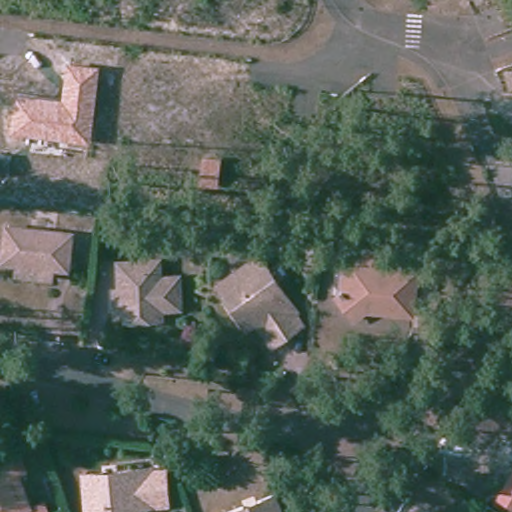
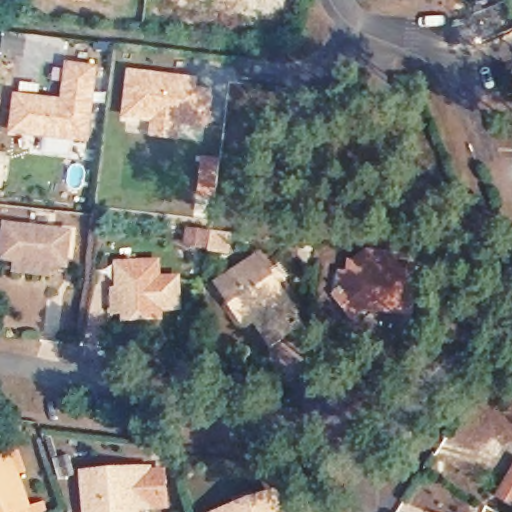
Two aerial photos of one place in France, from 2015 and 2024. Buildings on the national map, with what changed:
unchanged [(10,134),(12,94),(62,99),(66,63),(100,66),(90,143),(10,134)]
new [(120,113),(125,69),(168,74),(176,75),(190,77),(190,88),(205,89),(200,123),(174,119),(172,134),(147,131),(149,116),(120,113)]
unchanged [(221,158),(219,188),(199,187),(202,156),(221,158)]
unchanged [(6,271),(7,258),(0,257),(0,231),(1,224),(62,234),(57,264),(47,263),(44,277),(6,271)]
unchanged [(342,307),(338,308),(340,284),(352,283),(355,269),(365,257),(395,259),(407,275),(420,277),(416,313),(395,311),(371,309),(354,323),(342,307)]
unchanged [(267,330),(260,320),(256,322),(249,327),(231,300),(222,286),(261,259),(296,310),(291,314),(300,326),(289,334),(276,343),(267,330)]
unchanged [(115,298),(124,297),(120,265),(161,262),(162,275),(180,273),(182,310),(163,314),(164,324),(132,326),(131,317),(116,318),(115,298)]
unchanged [(42,512),(0,512),(0,458),(5,456),(14,454),(19,470),(11,473),(23,507),(39,502),(42,512)]
unchanged [(167,507),(131,509),(132,512),(89,512),(87,475),(165,471),(167,507)]
unchanged [(512,473),(512,504),(498,497),(512,473)]
unchanged [(273,497),(278,512),(231,512),(273,497)]

